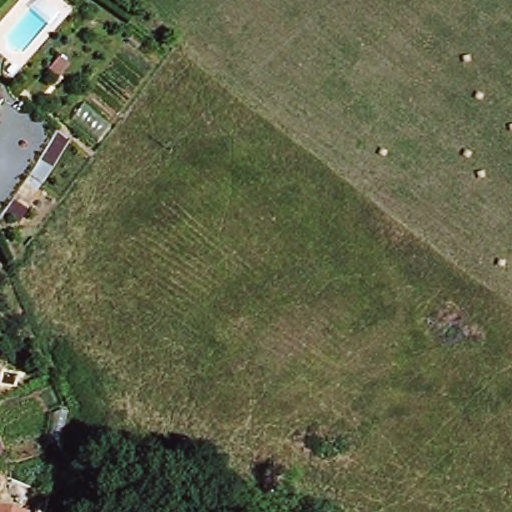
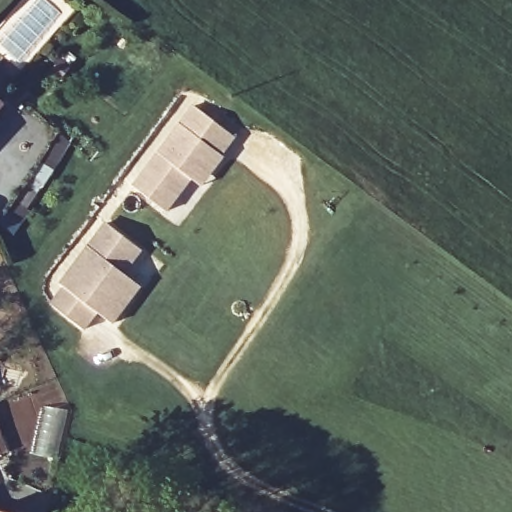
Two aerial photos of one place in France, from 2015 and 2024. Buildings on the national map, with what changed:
unchanged [(0,111),(0,93),(9,101),(0,111)]
new [(130,185),(192,103),(236,136),(223,155),(226,157),(203,186),(192,178),(165,211),(130,185)]
new [(28,206),(32,208),(13,235),(0,226),(0,221),(60,135),(72,143),(28,206)]
new [(144,249),(126,274),(142,286),(113,324),(98,312),(87,328),(55,305),(67,287),(62,284),(107,223),(144,249)]
new [(0,454),(0,429),(7,452),(0,454)]

